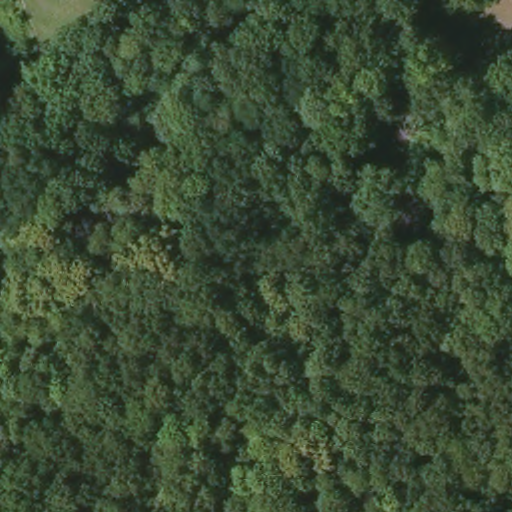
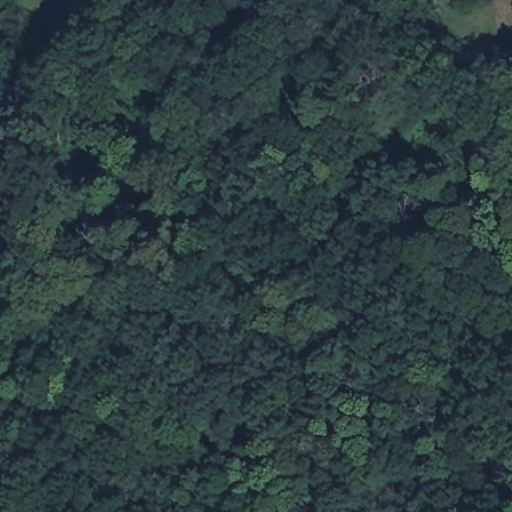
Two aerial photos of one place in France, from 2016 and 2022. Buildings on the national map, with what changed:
[]

